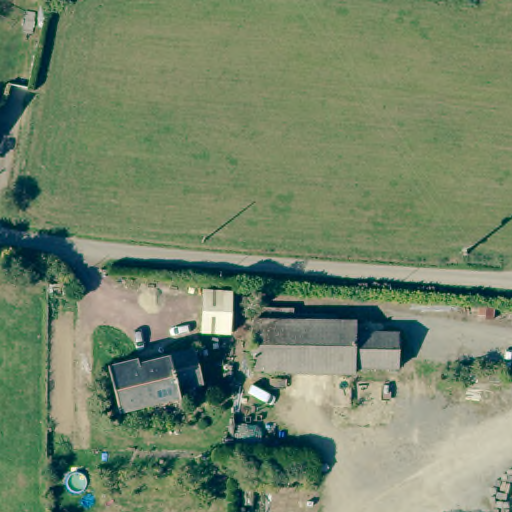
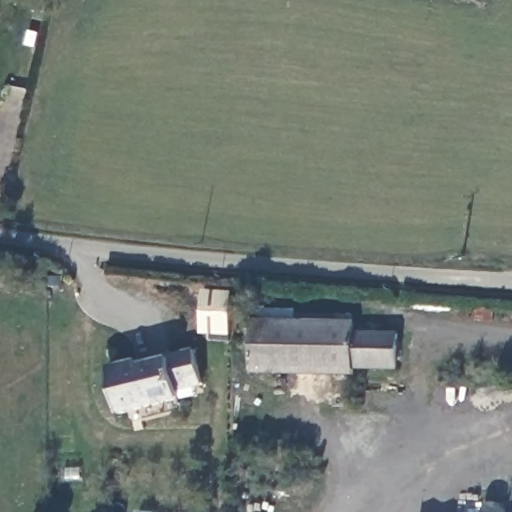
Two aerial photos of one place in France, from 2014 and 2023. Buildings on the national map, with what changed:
unchanged [(237,293),(234,334),(207,333),(208,292),(237,293)]
unchanged [(258,324),(361,325),(360,337),(404,338),(403,372),(358,371),(358,377),(258,374),(258,324)]
unchanged [(144,364),(145,369),(175,362),(175,359),(200,353),(208,386),(181,393),(183,402),(124,415),(114,371),(144,364)]

